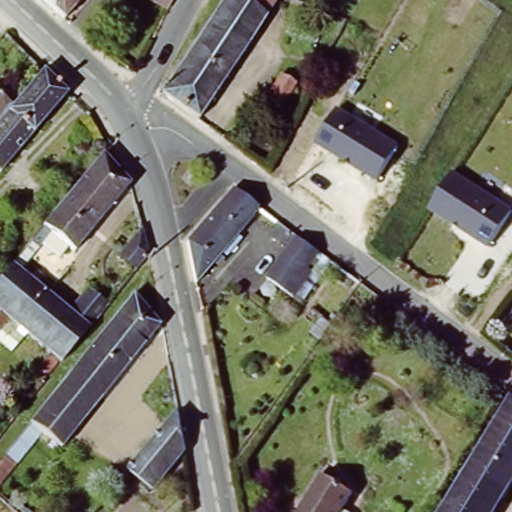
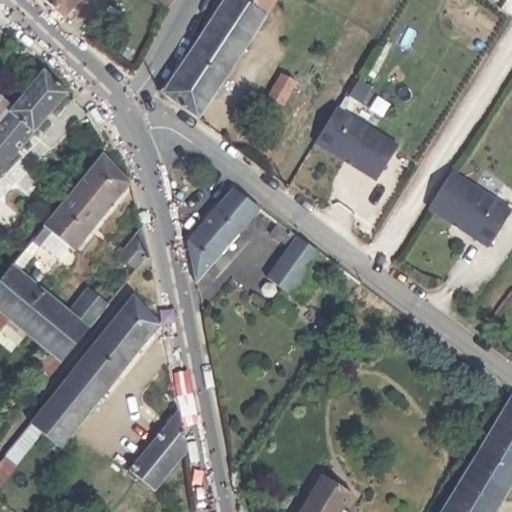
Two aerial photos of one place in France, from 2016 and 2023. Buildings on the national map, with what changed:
unchanged [(68,16),(50,0),(81,0),(68,16)]
unchanged [(137,0),(172,0),(165,13),(137,0)]
unchanged [(198,117),(162,90),(223,0),(275,0),(198,117)]
unchanged [(45,65),(70,90),(2,172),(0,170),(0,90),(15,102),(45,65)]
unchanged [(297,81),(283,104),(268,94),(282,71),(297,81)]
unchanged [(326,125),(334,111),(397,149),(376,183),(314,146),(326,125)]
unchanged [(104,156),(133,185),(84,245),(78,240),(68,252),(50,238),(48,241),(41,235),(104,156)]
unchanged [(449,174),(510,211),(487,247),(457,229),(459,227),(428,208),(449,174)]
unchanged [(232,190),(258,210),(193,287),(185,245),(232,190)]
unchanged [(139,224),(145,250),(134,265),(117,250),(139,224)]
unchanged [(318,255),(308,270),(312,273),(292,300),(268,282),(290,254),(269,240),(277,225),(318,255)]
unchanged [(12,353),(0,344),(0,316),(0,287),(14,269),(72,316),(90,293),(110,310),(47,389),(39,383),(55,361),(10,324),(26,337),(12,353)]
unchanged [(132,301),(160,324),(62,446),(41,428),(32,440),(23,433),(132,301)]
unchanged [(493,512),(436,512),(505,397),(512,402),(512,481),(493,512)]
unchanged [(177,411),(184,450),(153,485),(130,467),(177,411)]
unchanged [(0,468),(0,450),(9,457),(0,468)]
unchanged [(340,508),(347,512),(299,512),(322,473),(351,491),(340,508)]

